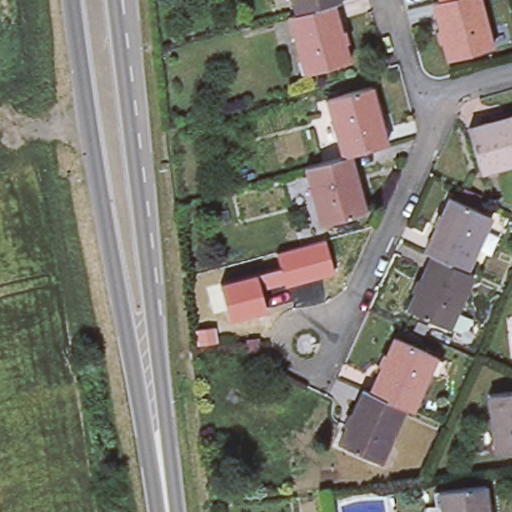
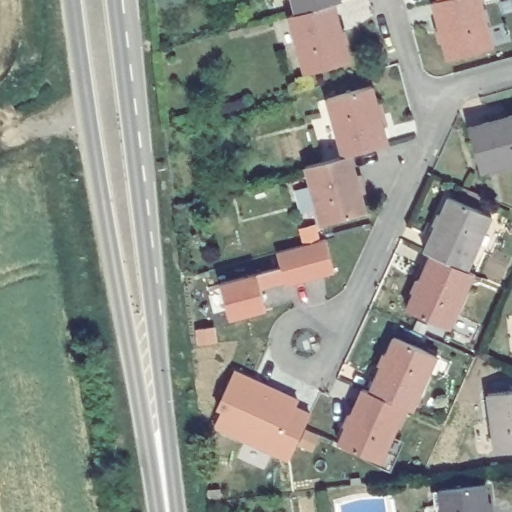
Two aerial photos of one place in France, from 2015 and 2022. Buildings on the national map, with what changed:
unchanged [(335,5),(330,6),(292,16),(287,0),(334,0),(335,5)]
unchanged [(483,54),(449,62),(445,45),(442,45),(439,32),(441,32),(434,4),(440,2),(449,0),(479,0),(489,36),(493,51),(483,54)]
unchanged [(440,2),(439,0),(449,0),(440,2)]
unchanged [(296,62),(284,19),(292,16),(330,6),(337,33),(340,32),(343,45),(340,45),(345,65),(310,74),(300,76),(296,62)]
unchanged [(373,107),(376,106),(381,124),(378,125),(383,147),(346,157),(338,160),(327,115),(322,101),(332,99),(368,90),(373,107)]
unchanged [(477,170),(464,125),(485,120),(485,115),(503,110),(505,114),(512,112),(512,161),(477,170)]
unchanged [(312,213),(302,170),(338,160),(346,157),(352,179),(355,178),(360,196),(357,197),(362,215),(326,225),(316,227),(312,213)]
unchanged [(435,228),(440,217),(442,218),(450,200),(483,215),(492,219),(486,233),(467,274),(432,258),(425,255),(437,230),(435,228)]
unchanged [(228,320),(220,282),(257,272),(280,266),(277,251),(325,239),(335,275),(285,287),(283,283),(262,288),(267,310),(228,320)]
unchanged [(441,327),(407,312),(415,296),(413,295),(418,283),(420,284),(432,258),(467,274),(474,277),(455,318),(450,331),(441,327)]
unchanged [(375,368),(381,356),(382,357),(390,340),(424,355),(433,358),(427,372),(408,414),(401,410),(365,395),(377,369),(375,368)]
new [(214,428),(221,413),(216,410),(237,371),(302,400),(297,408),(310,415),(290,462),(214,428)]
unchanged [(490,436),(484,391),(512,389),(512,448),(502,450),(491,450),(490,436)]
unchanged [(367,461),(335,446),(342,430),(340,428),(345,417),(347,418),(359,391),(365,395),(401,410),(383,451),(377,465),(367,461)]
unchanged [(445,491),(480,488),(483,506),(487,506),(487,512),(437,512),(437,508),(435,492),(445,491)]

